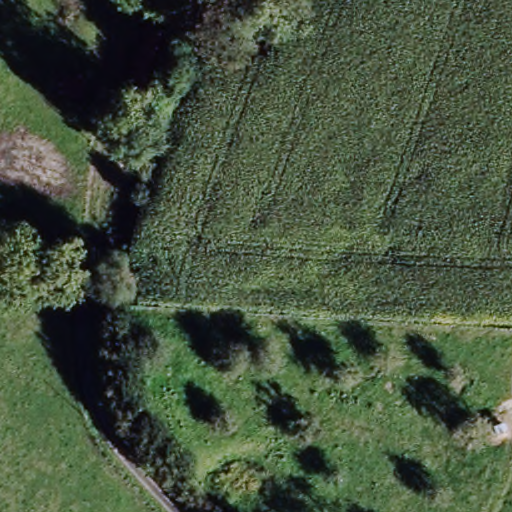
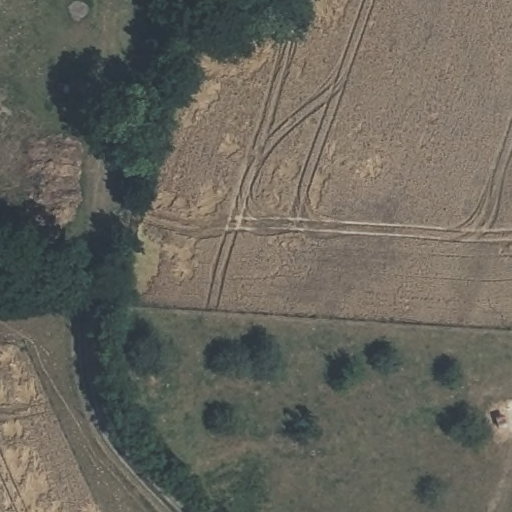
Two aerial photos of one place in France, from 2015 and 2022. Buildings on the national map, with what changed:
unchanged [(163,80),(130,70),(136,0),(168,0),(163,80)]

